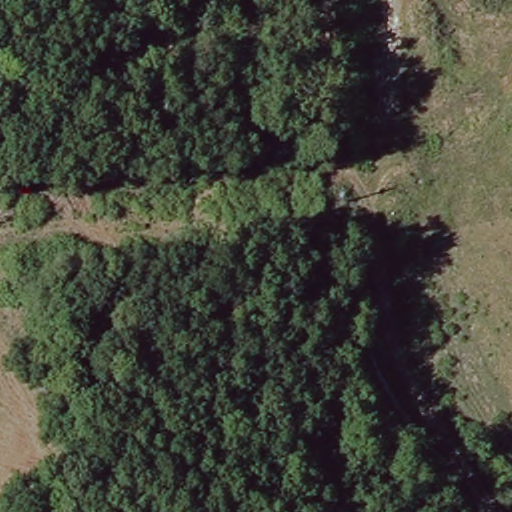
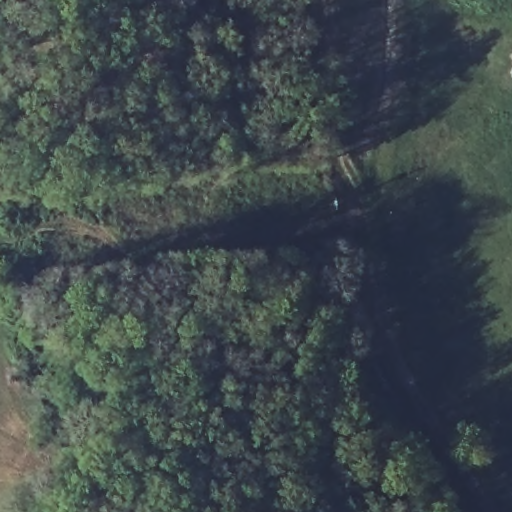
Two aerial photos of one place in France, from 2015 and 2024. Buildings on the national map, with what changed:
unchanged [(512,52),(512,56),(511,53),(512,52)]

